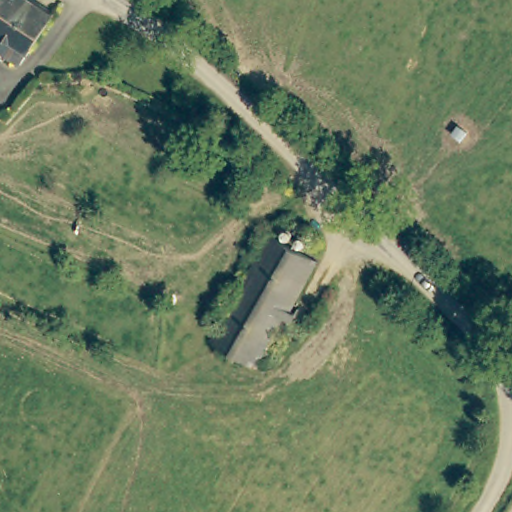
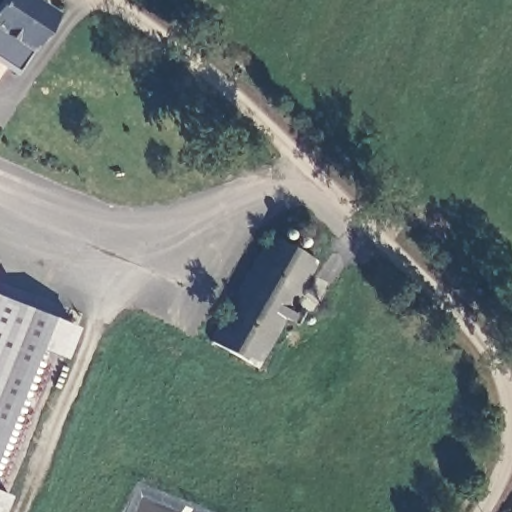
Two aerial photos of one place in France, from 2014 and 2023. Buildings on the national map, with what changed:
unchanged [(25,51),(0,36),(0,0),(54,0),(56,1),(25,51)]
unchanged [(315,261),(258,356),(217,332),(272,236),(315,261)]
new [(65,358),(39,348),(0,444),(0,296),(77,327),(65,358)]
new [(4,512),(0,512),(0,491),(11,495),(4,512)]

